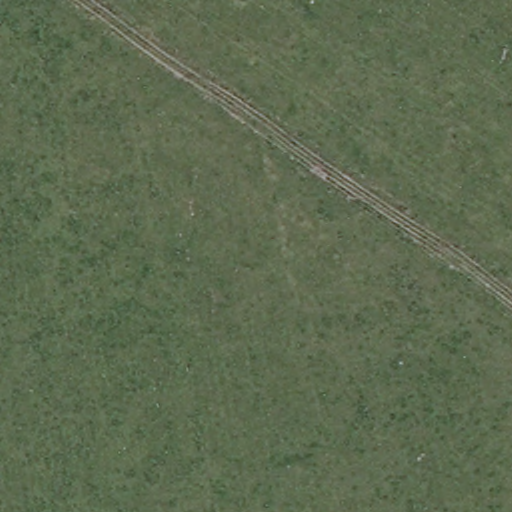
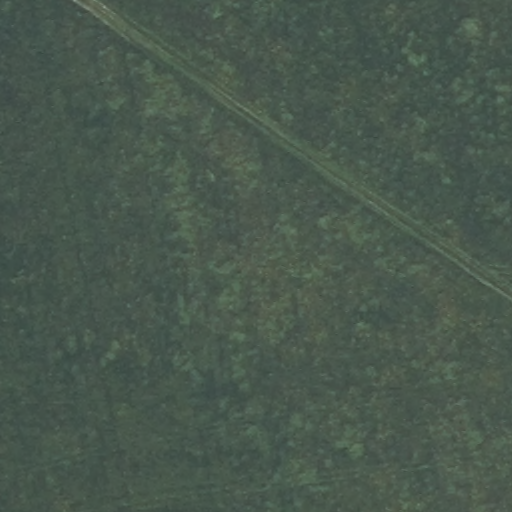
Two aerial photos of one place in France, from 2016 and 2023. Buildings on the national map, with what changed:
[]

